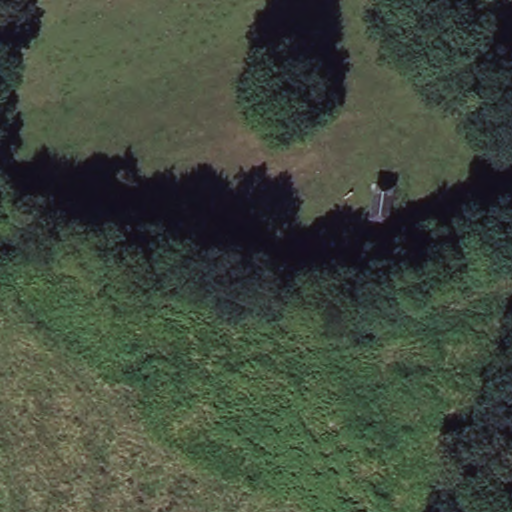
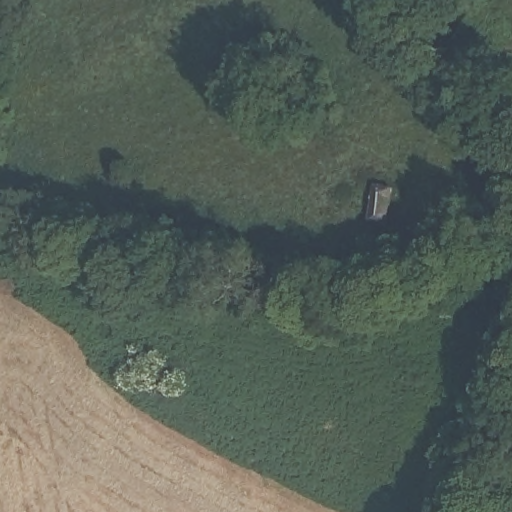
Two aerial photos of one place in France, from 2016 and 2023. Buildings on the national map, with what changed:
unchanged [(396,193),(389,225),(375,222),(380,191),(396,193)]

